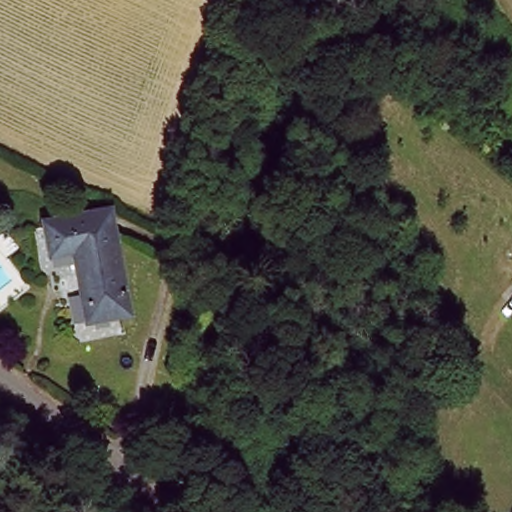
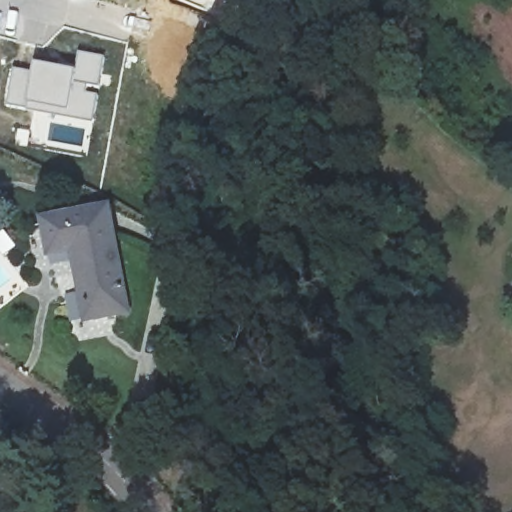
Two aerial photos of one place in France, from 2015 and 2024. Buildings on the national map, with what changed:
new [(97,93),(92,121),(67,117),(26,110),(3,106),(10,66),(31,69),(32,62),(75,70),(78,52),(105,56),(99,90),(91,87),(91,92),(97,93)]
unchanged [(126,313),(86,322),(80,287),(75,288),(70,252),(50,256),(43,220),(108,210),(126,313)]

